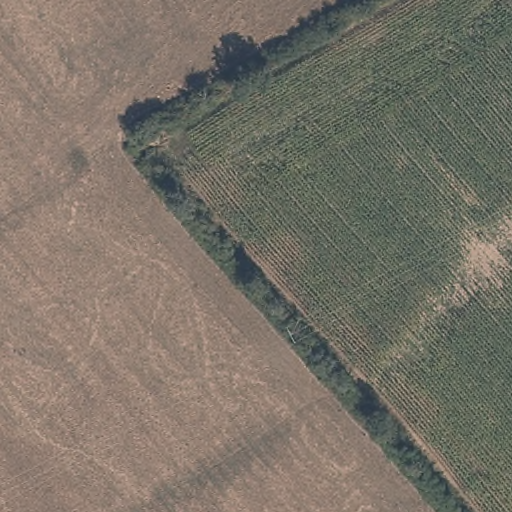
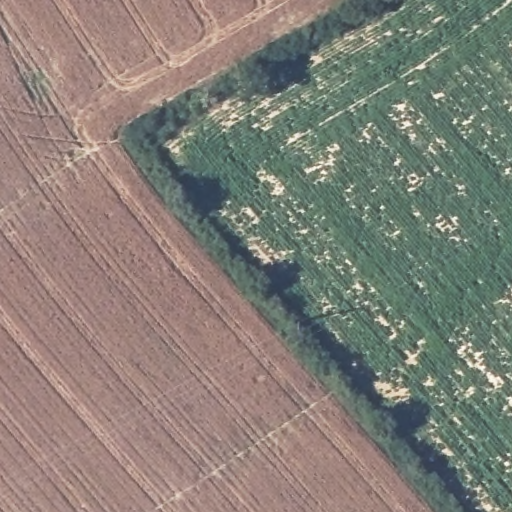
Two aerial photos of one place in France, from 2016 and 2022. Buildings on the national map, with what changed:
[]

